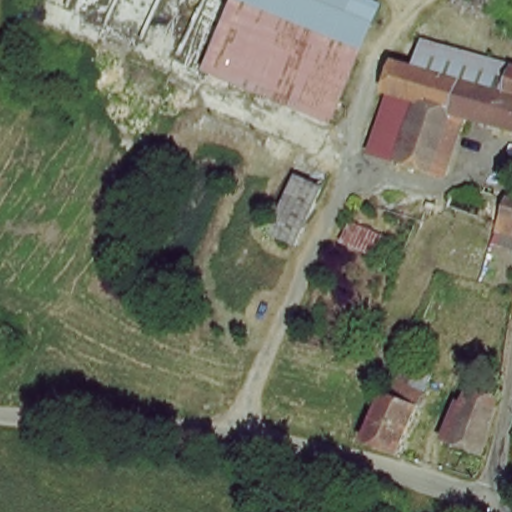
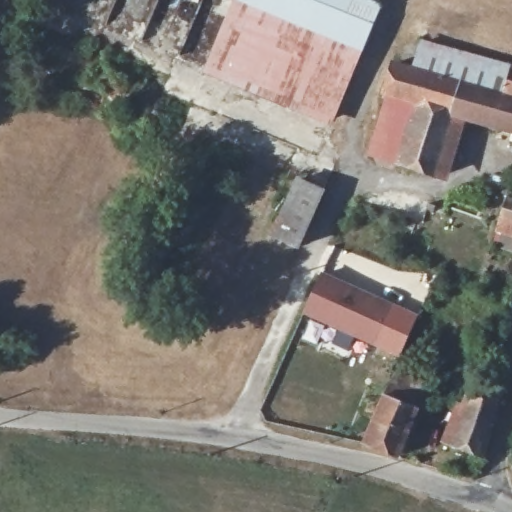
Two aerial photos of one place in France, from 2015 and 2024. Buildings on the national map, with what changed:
unchanged [(235,0),(292,0),(310,7),(293,37),(282,63),(287,65),(274,92),(268,103),(223,85),(205,77),(235,0)]
unchanged [(369,31),(331,129),(268,103),(274,92),(287,65),(282,63),(293,37),(310,7),(369,31)]
unchanged [(512,72),(512,101),(412,72),(420,45),(512,72)]
unchanged [(449,182),(410,170),(426,110),(395,101),(404,70),(412,72),(512,101),(512,135),(464,124),(449,182)]
unchanged [(426,110),(410,170),(377,159),(395,101),(426,110)]
unchanged [(279,237),(301,182),(324,192),(302,247),(279,237)]
unchanged [(495,232),(503,207),(512,210),(512,246),(493,240),(495,232)]
new [(321,271),(394,303),(376,346),(302,313),(321,271)]
unchanged [(397,462),(366,451),(389,404),(400,381),(425,391),(415,414),(419,416),(397,462)]
unchanged [(454,453),(464,422),(460,421),(464,410),(443,401),(450,386),(498,406),(494,436),(484,464),(454,453)]

